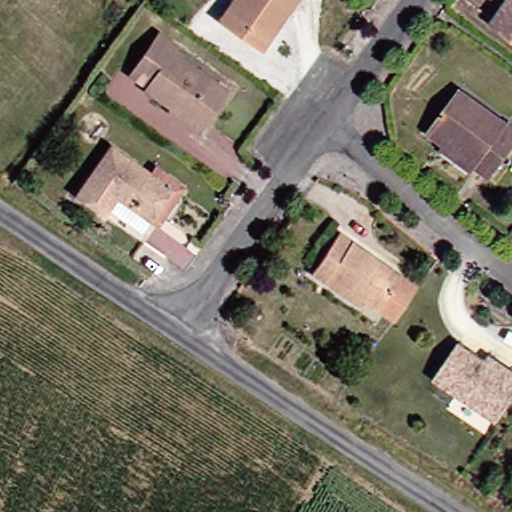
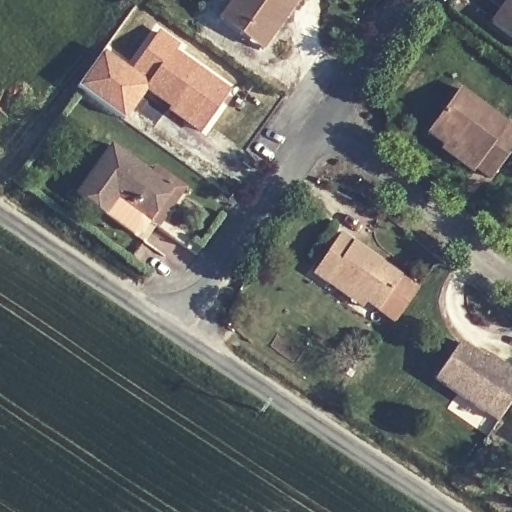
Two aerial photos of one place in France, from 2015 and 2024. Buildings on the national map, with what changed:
unchanged [(228,10),(260,32),(283,0),(291,0),(260,45),(214,14),(225,0),(235,0),(228,10)]
unchanged [(260,32),(228,10),(235,0),(283,0),(260,32)]
unchanged [(511,0),(512,0),(512,45),(489,28),(511,0)]
unchanged [(199,128),(169,114),(172,106),(147,92),(147,85),(130,72),(160,35),(178,49),(176,53),(229,88),(199,128)]
new [(78,87),(103,53),(130,72),(147,85),(147,92),(125,120),(78,87)]
unchanged [(442,149),(425,136),(460,93),(512,130),(512,148),(487,180),(474,172),(466,176),(440,155),(442,149)]
unchanged [(165,221),(160,218),(148,237),(81,194),(118,148),(159,177),(164,168),(187,188),(165,221)]
unchanged [(325,285),(311,274),(340,232),(417,289),(392,323),(366,303),(361,310),(325,285)]
unchanged [(459,336),(487,354),(489,349),(512,364),(512,393),(496,416),(434,371),(459,336)]

